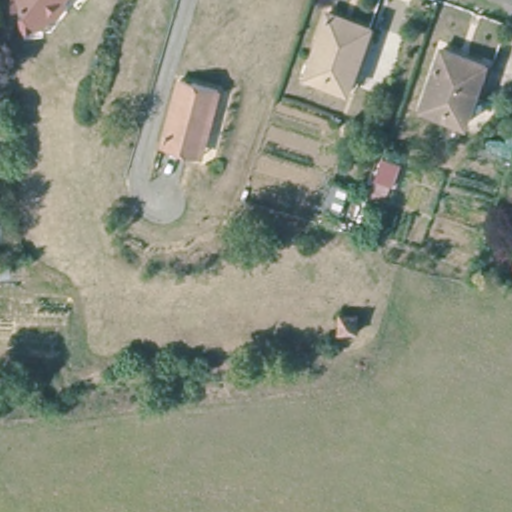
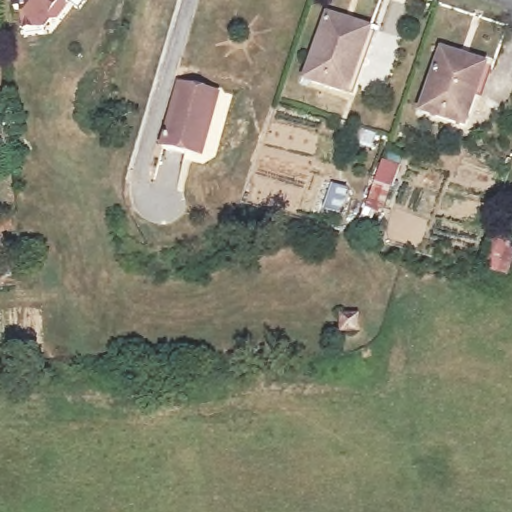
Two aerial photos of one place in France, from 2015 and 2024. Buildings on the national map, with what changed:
unchanged [(23,37),(23,26),(21,5),(12,6),(11,0),(65,0),(67,1),(56,19),(49,14),(43,23),(45,34),(23,37)]
unchanged [(305,76),(326,12),(368,29),(347,90),(305,76)]
unchanged [(424,106),(442,51),(486,64),(466,119),(424,106)]
unchanged [(189,153),(162,145),(182,78),(219,87),(206,142),(202,156),(189,153)]
unchanged [(0,143),(0,119),(11,118),(13,141),(0,143)]
unchanged [(383,153),(401,158),(393,175),(377,170),(383,153)]
unchanged [(360,327),(342,327),(342,309),(358,310),(360,327)]

